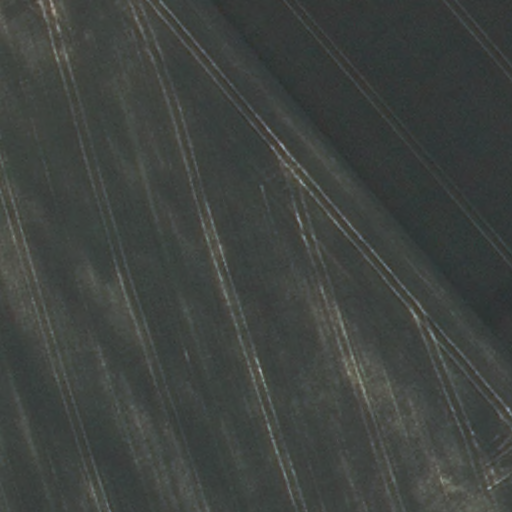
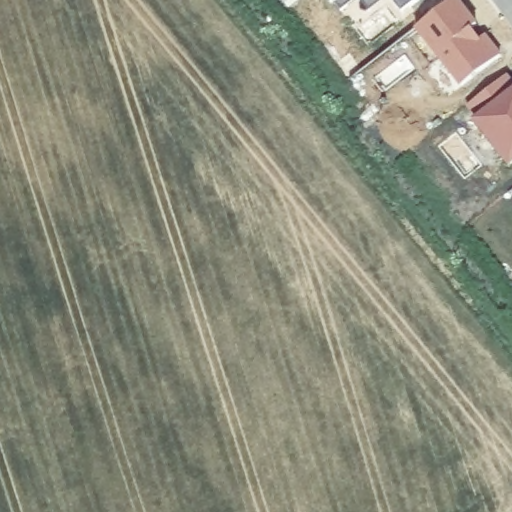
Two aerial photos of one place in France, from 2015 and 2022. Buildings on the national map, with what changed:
new [(343,16),(332,0),(363,0),(343,16)]
new [(391,0),(427,0),(412,12),(405,17),(391,0)]
new [(478,29),(473,32),(481,44),(486,39),(502,60),(463,90),(418,32),(457,2),(478,29)]
new [(512,81),(512,159),(507,162),(471,119),(475,117),(466,107),(507,74),(512,81)]

